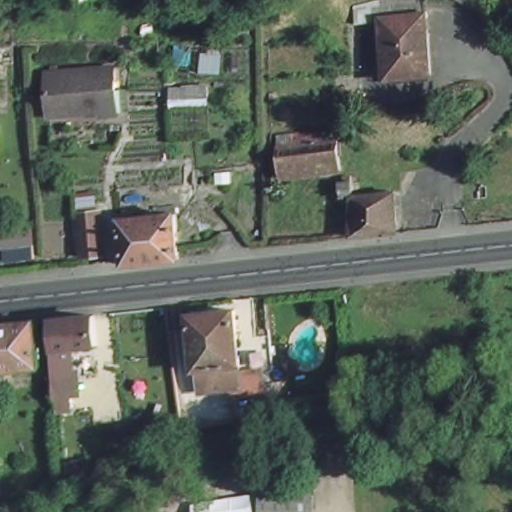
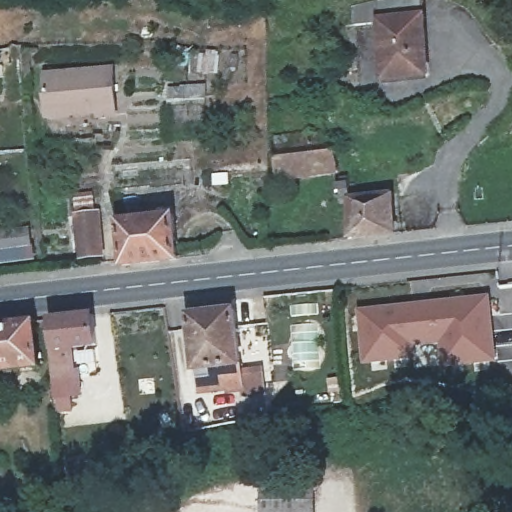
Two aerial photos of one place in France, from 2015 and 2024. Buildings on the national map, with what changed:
unchanged [(424,69),(383,72),(379,10),(418,8),(424,69)]
unchanged [(96,115),(93,109),(47,113),(43,70),(110,66),(113,113),(96,115)]
unchanged [(337,144),(340,175),(283,181),(281,150),(337,144)]
unchanged [(346,202),(346,186),(360,185),(360,200),(346,202)]
unchanged [(398,195),(401,235),(357,240),(360,200),(398,195)]
unchanged [(80,255),(74,212),(95,209),(100,253),(80,255)]
unchanged [(124,260),(117,216),(170,211),(176,254),(124,260)]
new [(490,291),(500,362),(452,369),(417,369),(416,361),(362,365),(356,309),(490,291)]
unchanged [(64,393),(59,347),(56,316),(99,312),(102,342),(69,346),(74,393),(64,393)]
unchanged [(200,372),(192,317),(238,312),(245,389),(229,391),(203,393),(200,372)]
unchanged [(41,366),(0,369),(0,322),(36,318),(41,366)]
unchanged [(76,389),(75,374),(96,374),(97,389),(76,389)]
unchanged [(264,510),(265,486),(318,486),(316,510),(316,512),(264,512),(264,510)]

